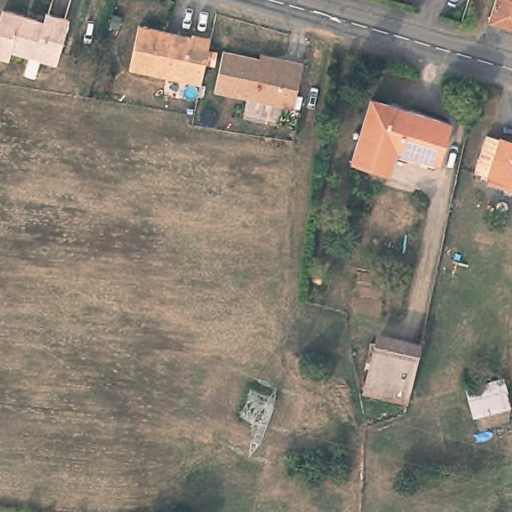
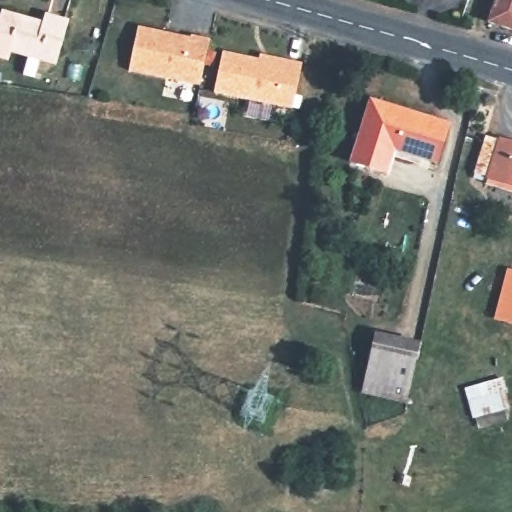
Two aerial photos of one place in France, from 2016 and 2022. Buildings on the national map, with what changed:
unchanged [(512,28),(490,21),(497,0),(512,0),(512,28)]
unchanged [(20,18),(44,23),(47,14),(69,19),(58,64),(11,54),(20,18)]
unchanged [(199,86),(128,70),(138,27),(191,38),(191,36),(210,40),(199,86)]
unchanged [(260,54),(285,60),(302,63),(292,109),(214,92),(222,51),(259,59),(260,54)]
unchanged [(373,100),(449,123),(438,158),(380,141),(373,166),(355,161),(373,100)]
unchanged [(512,145),(512,187),(472,175),(484,137),(512,145)]
new [(512,324),(493,319),(506,267),(512,268),(512,324)]
unchanged [(408,395),(366,388),(376,340),(418,348),(408,395)]
unchanged [(512,413),(512,417),(476,429),(465,389),(503,378),(512,413)]

